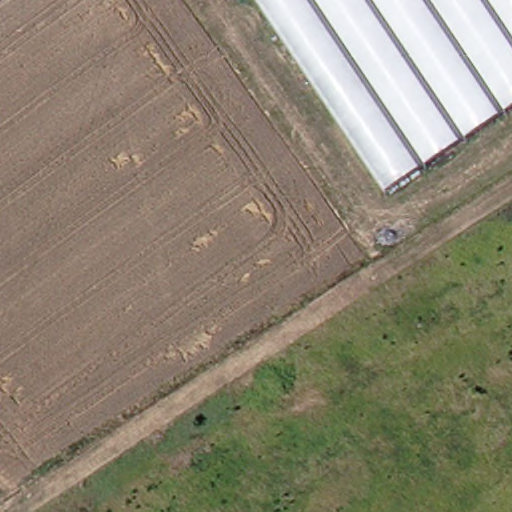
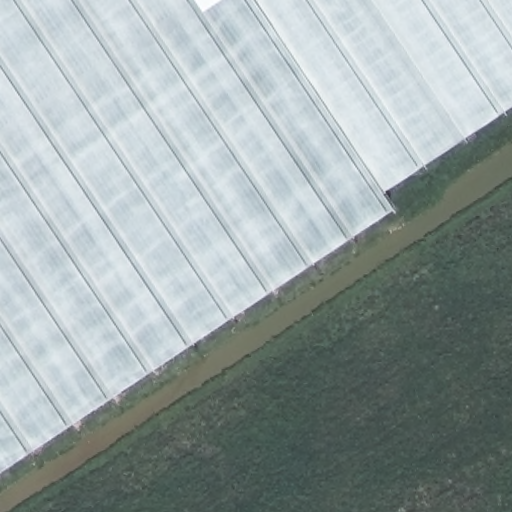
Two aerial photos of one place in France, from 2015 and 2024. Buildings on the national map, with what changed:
demolished [(200,29),(0,173),(0,0),(178,0),(200,29)]
new [(0,0),(249,0),(392,213),(0,478),(0,0)]
unchanged [(387,187),(261,0),(512,0),(512,104),(387,187)]
demolished [(347,243),(47,460),(0,395),(0,217),(219,59),(347,243)]

